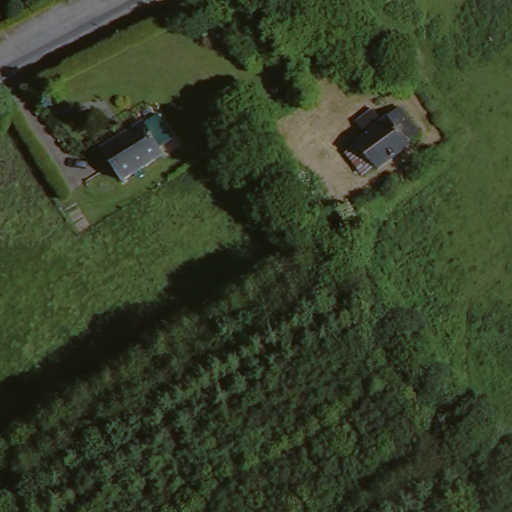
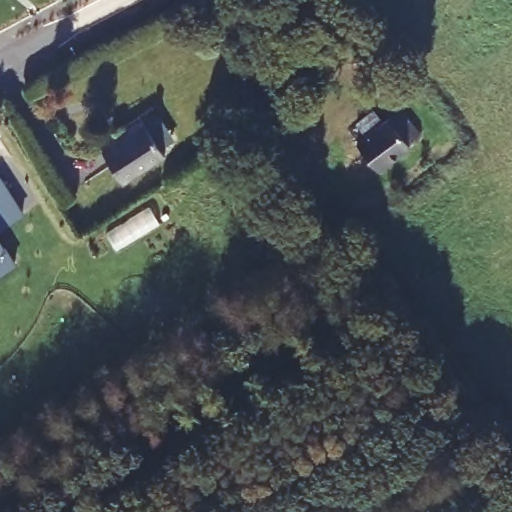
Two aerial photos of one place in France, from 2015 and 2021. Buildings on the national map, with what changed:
unchanged [(429,132),(418,140),(422,145),(388,169),(385,164),(371,174),(355,154),(355,150),(365,144),(362,139),(410,105),(429,132)]
unchanged [(164,155),(122,179),(103,145),(145,122),(164,155)]
new [(0,175),(24,214),(0,230),(0,175)]
new [(5,247),(16,263),(0,274),(0,239),(5,247)]

